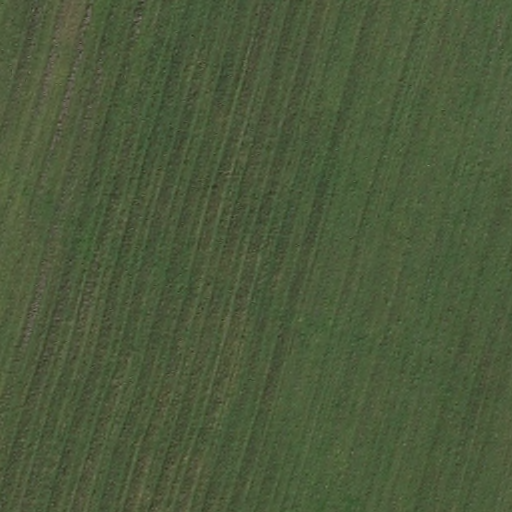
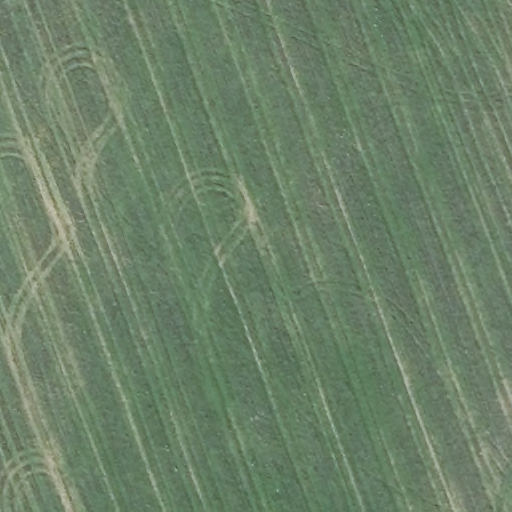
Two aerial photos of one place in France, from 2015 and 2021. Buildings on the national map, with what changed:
[]

